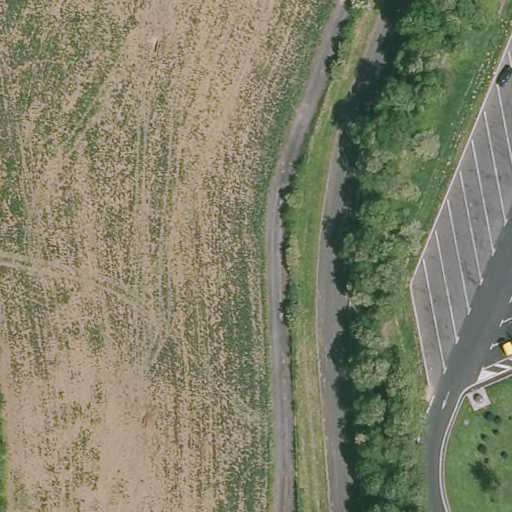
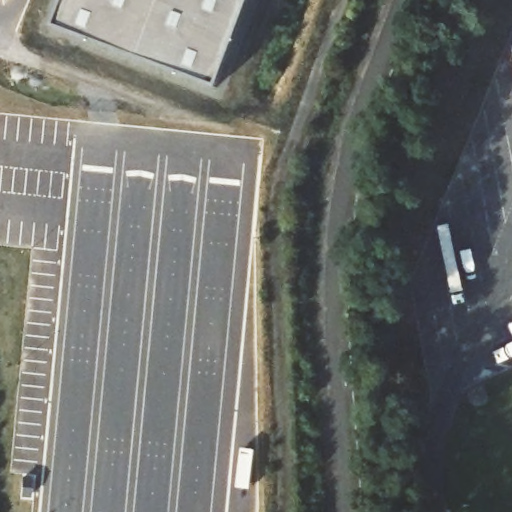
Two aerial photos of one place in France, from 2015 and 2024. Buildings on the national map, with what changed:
new [(214,85),(51,25),(61,0),(246,0),(214,85)]

